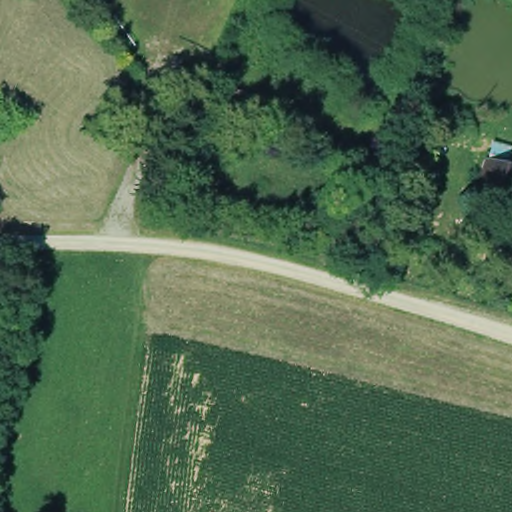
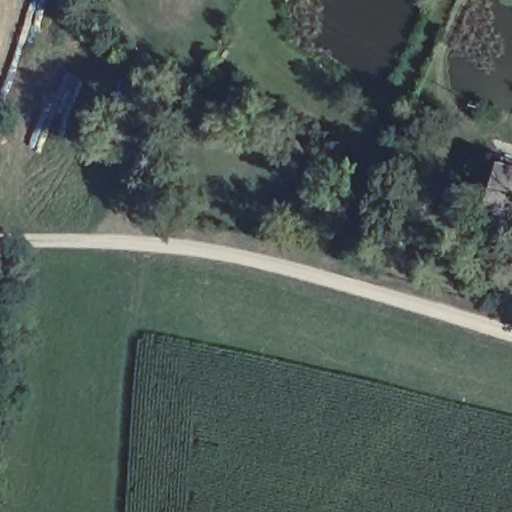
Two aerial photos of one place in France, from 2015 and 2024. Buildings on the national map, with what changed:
unchanged [(472,210),(482,175),(512,183),(512,195),(506,219),(472,210)]

